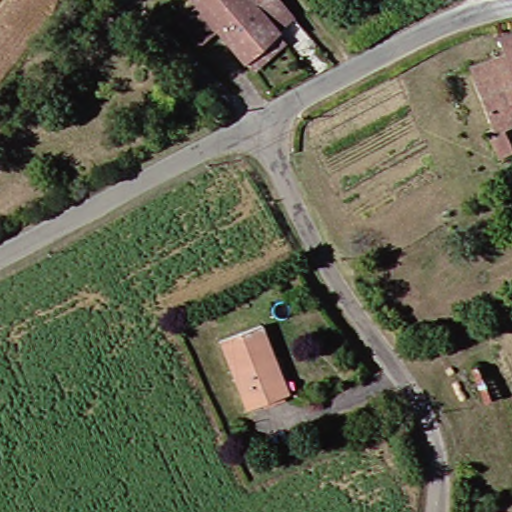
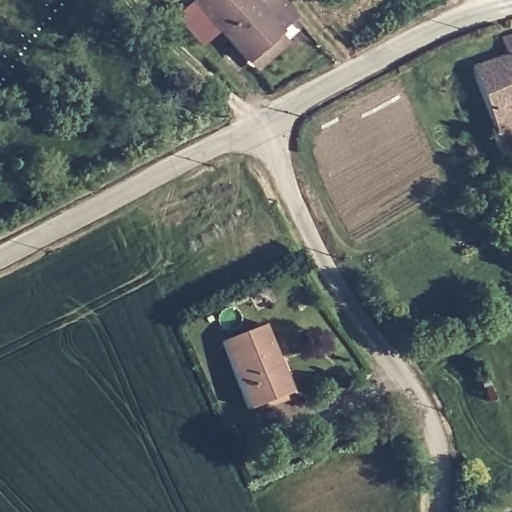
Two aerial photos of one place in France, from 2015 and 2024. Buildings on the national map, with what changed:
unchanged [(253,64),(224,30),(205,47),(181,19),(204,0),(285,0),(298,15),(304,21),(286,38),(292,45),(260,73),(253,64)]
unchanged [(506,29),(512,27),(512,47),(506,29)]
unchanged [(510,133),(512,139),(512,155),(498,160),(487,131),(496,128),(475,71),(512,56),(512,131),(510,133)]
unchanged [(290,396),(251,409),(228,342),(267,329),(290,396)]

